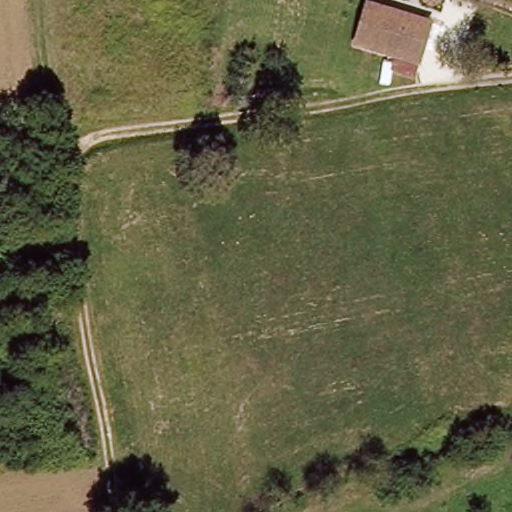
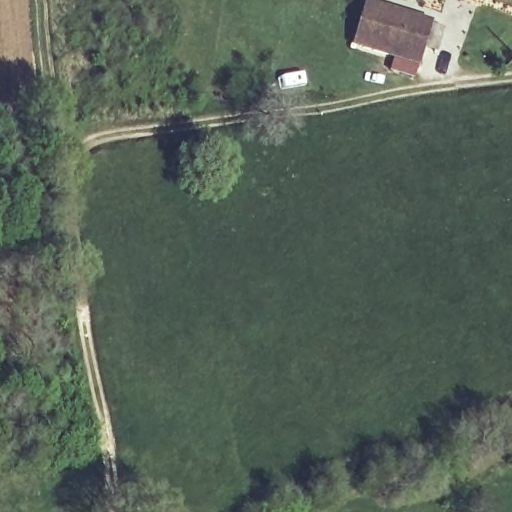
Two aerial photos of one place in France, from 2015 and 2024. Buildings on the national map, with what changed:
unchanged [(421,60),(361,46),(366,23),(371,5),(392,9),(431,19),(421,60)]

